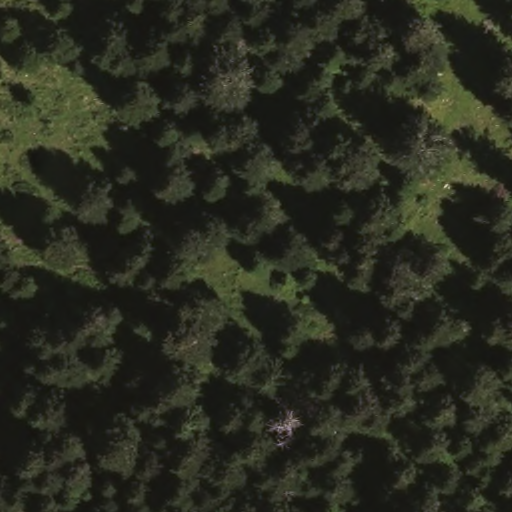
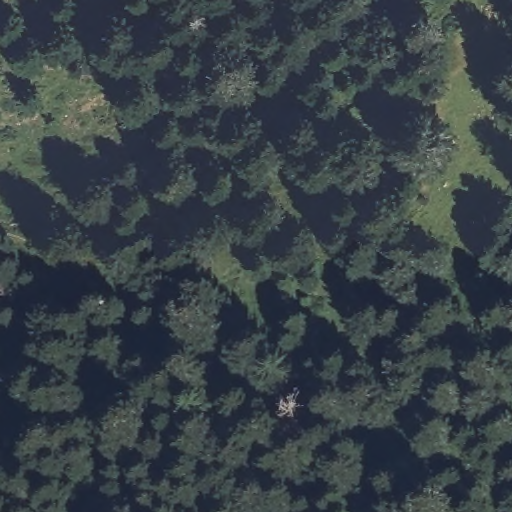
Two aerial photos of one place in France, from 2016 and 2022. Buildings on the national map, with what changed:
unchanged [(10,368),(18,391),(0,398),(0,372),(10,368)]

